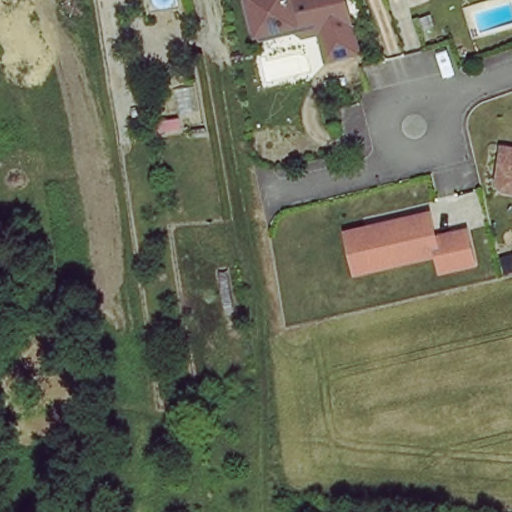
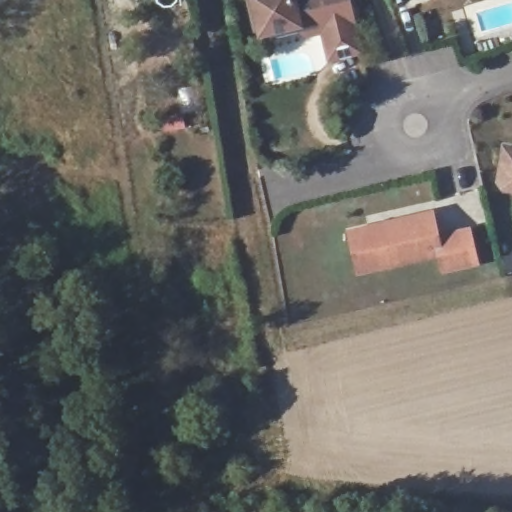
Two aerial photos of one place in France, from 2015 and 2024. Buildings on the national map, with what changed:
unchanged [(348,17),(358,49),(327,57),(319,25),(305,29),(296,24),(258,34),(250,0),(345,0),(350,16),(348,17)]
unchanged [(505,140),(512,142),(512,192),(491,187),(505,140)]
unchanged [(351,248),(346,228),(427,208),(433,232),(465,224),(472,257),(440,264),(435,247),(375,262),(355,267),(351,248)]

